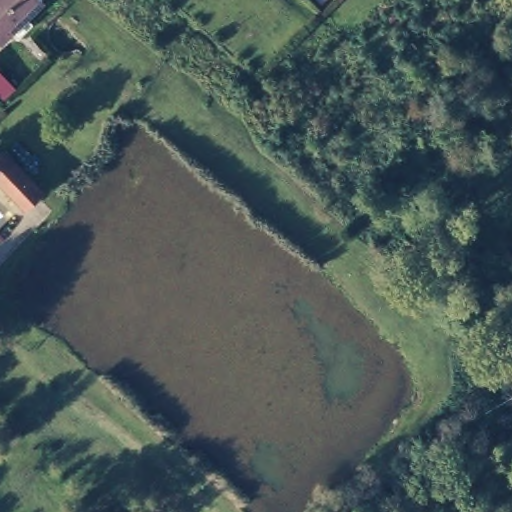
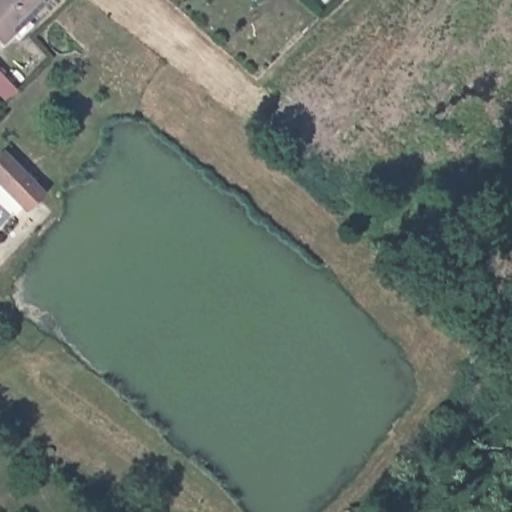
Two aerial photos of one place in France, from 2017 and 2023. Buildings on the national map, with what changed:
unchanged [(11,28),(2,37),(0,35),(0,0),(38,0),(24,15),(31,21),(18,35),(11,28)]
unchanged [(39,190),(24,204),(0,180),(0,151),(39,190)]

